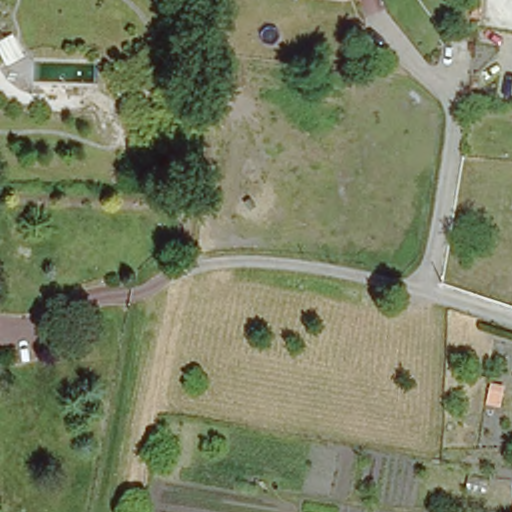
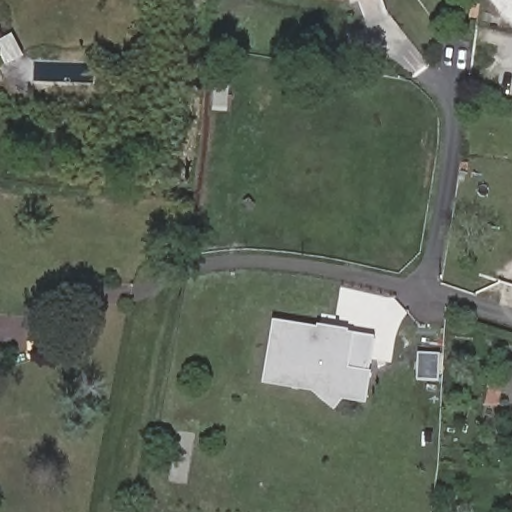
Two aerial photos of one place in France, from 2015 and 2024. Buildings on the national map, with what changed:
unchanged [(328,0),(351,0),(342,2),(328,0)]
new [(272,323),(348,336),(349,333),(371,337),(361,401),(338,397),(331,406),(310,389),(262,381),(272,323)]

